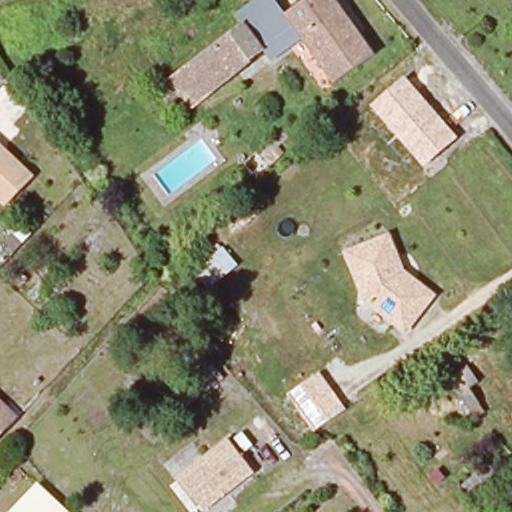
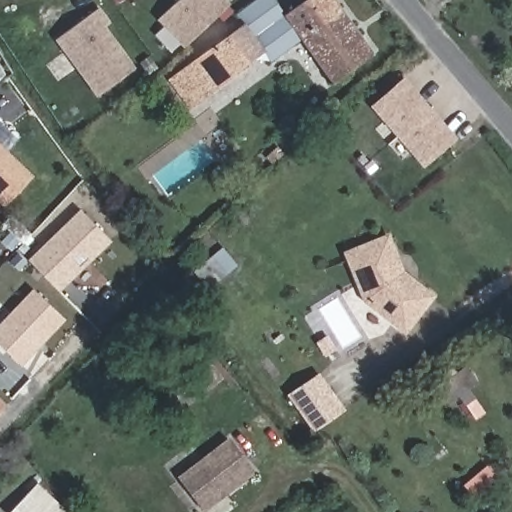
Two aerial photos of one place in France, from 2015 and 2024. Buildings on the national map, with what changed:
new [(161,22),(184,0),(224,0),(231,7),(188,50),(161,22)]
unchanged [(246,21),(243,17),(237,10),(250,0),(267,0),(280,0),(286,8),(297,0),(337,0),(377,52),(341,81),(308,37),(292,49),(275,61),(264,48),(195,100),(176,73),(246,21)]
new [(106,95),(63,39),(103,9),(113,22),(108,26),(118,39),(126,49),(141,69),(106,95)]
unchanged [(423,168),(369,105),(404,74),(459,139),(423,168)]
unchanged [(35,176),(4,207),(0,203),(0,141),(35,176)]
new [(81,207),(112,240),(60,291),(28,258),(81,207)]
unchanged [(428,297),(401,331),(364,302),(344,255),(384,238),(400,275),(428,297)]
unchanged [(208,290),(191,270),(221,245),(237,265),(208,290)]
new [(0,347),(0,325),(33,290),(66,319),(20,366),(0,347)]
unchanged [(458,397),(449,403),(436,386),(465,363),(478,383),(470,390),(479,404),(468,411),(458,397)]
unchanged [(220,388),(159,431),(147,415),(209,372),(220,388)]
unchanged [(318,430),(292,395),(318,376),(344,411),(318,430)]
unchanged [(16,417),(0,437),(0,401),(16,417)]
unchanged [(255,481),(212,512),(208,512),(184,477),(230,445),(255,481)]
unchanged [(58,512),(19,512),(18,511),(37,491),(58,512)]

